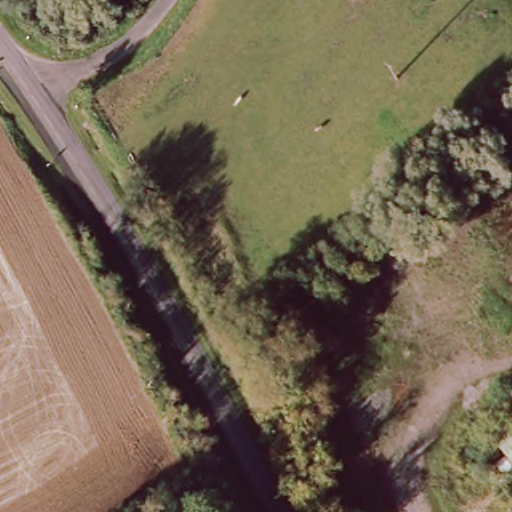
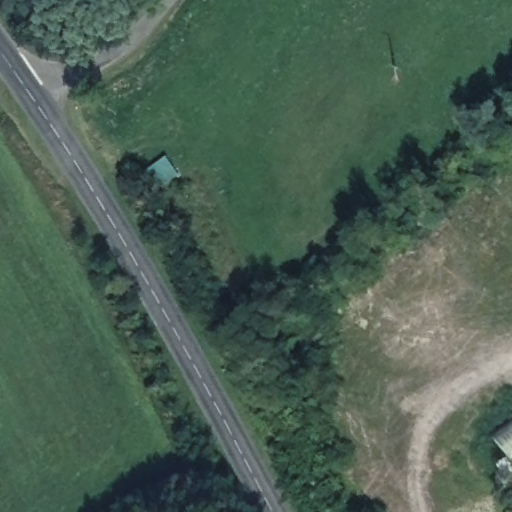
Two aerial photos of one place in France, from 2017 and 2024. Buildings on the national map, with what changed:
unchanged [(499,463),(509,457),(496,441),(512,430),(512,483),(499,463)]

